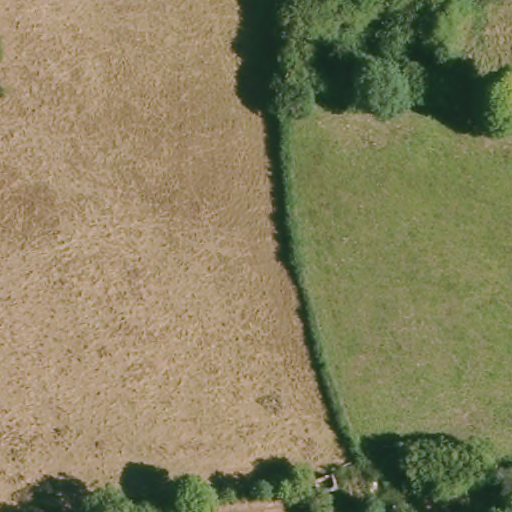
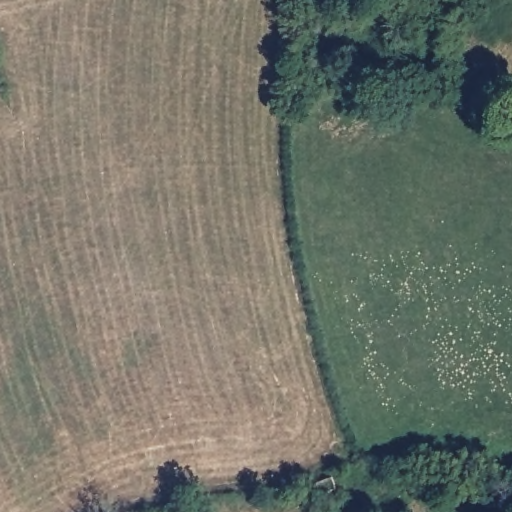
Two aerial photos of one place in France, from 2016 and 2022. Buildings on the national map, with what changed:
unchanged [(341,484),(321,497),(317,485),(335,474),(341,484)]

